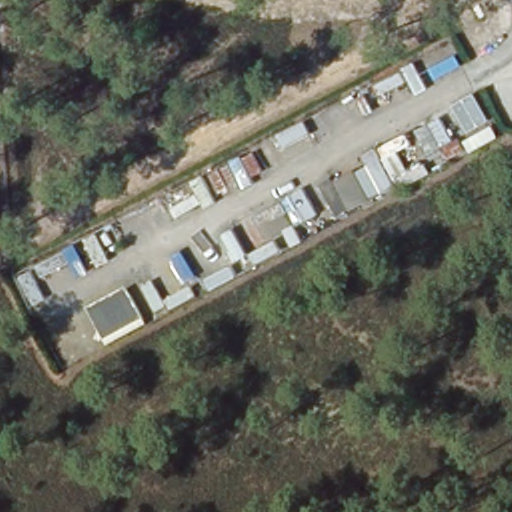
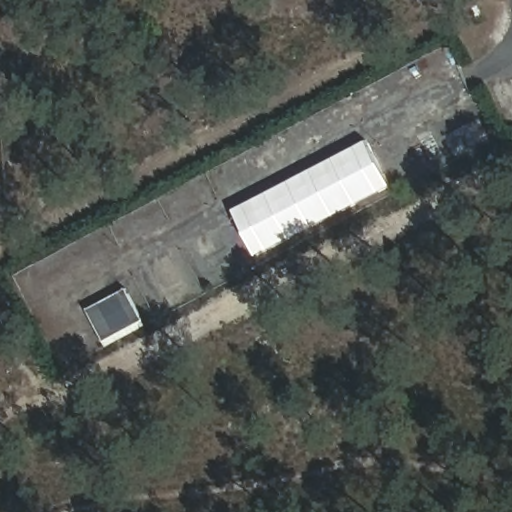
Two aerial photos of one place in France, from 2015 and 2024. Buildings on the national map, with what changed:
new [(257,255),(233,210),(366,141),(389,186),(257,255)]
new [(86,310),(126,288),(144,321),(145,325),(106,347),(104,341),(86,310)]

